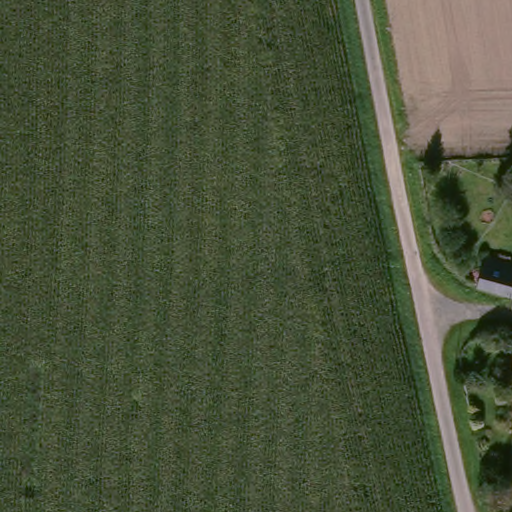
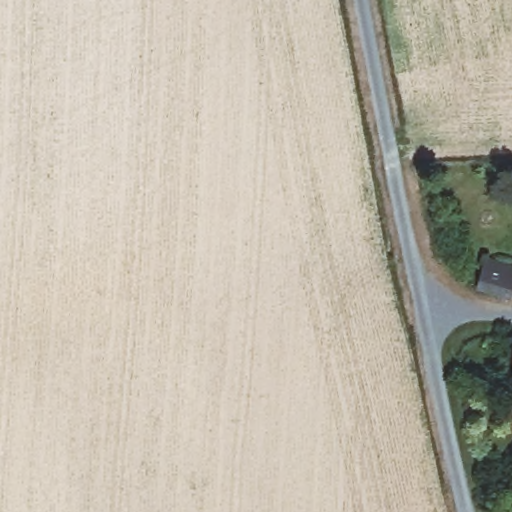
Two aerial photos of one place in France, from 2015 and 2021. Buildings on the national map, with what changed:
unchanged [(477,271),(480,262),(512,270),(512,275),(511,280),(505,301),(472,292),(477,271)]

